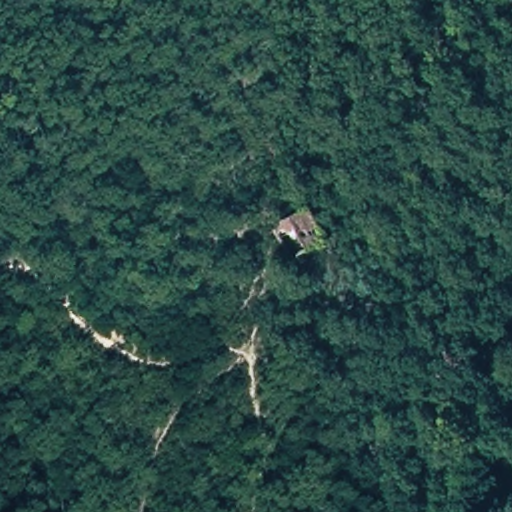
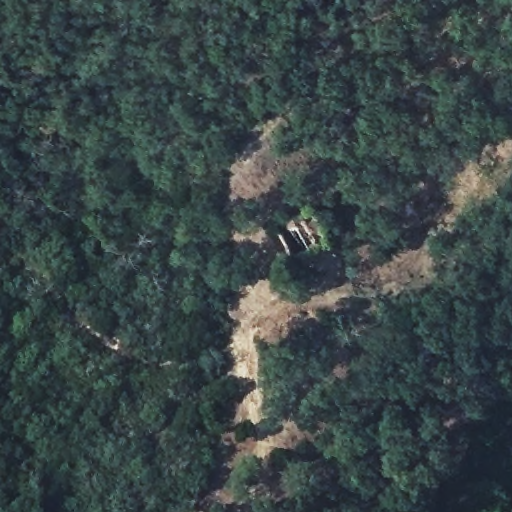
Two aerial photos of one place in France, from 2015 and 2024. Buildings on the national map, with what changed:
unchanged [(334,240),(290,260),(275,222),(315,206),(334,240)]

